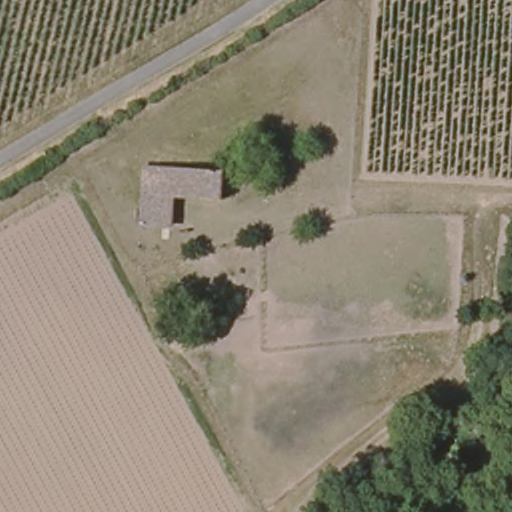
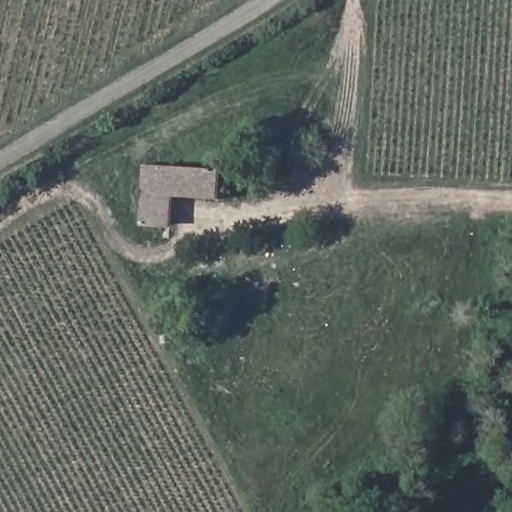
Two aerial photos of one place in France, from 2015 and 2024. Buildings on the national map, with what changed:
unchanged [(139,222),(139,214),(141,190),(143,162),(157,164),(157,157),(221,165),(219,199),(166,193),(164,217),(164,224),(139,222)]

